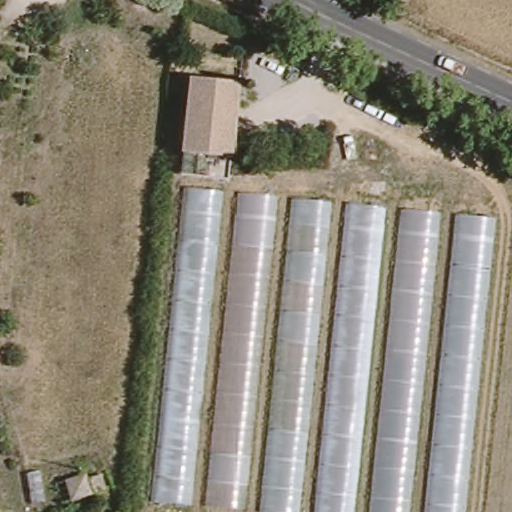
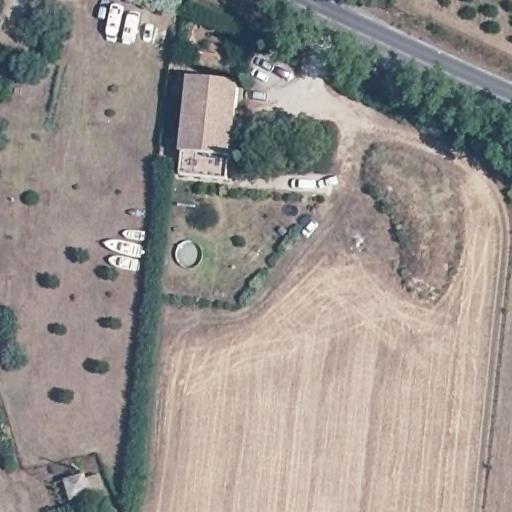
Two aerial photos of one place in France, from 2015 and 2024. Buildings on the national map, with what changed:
unchanged [(244,88),(235,162),(185,156),(194,82),(244,88)]
demolished [(193,184),(503,217),(470,512),(274,512),(156,498),(193,184)]
unchanged [(97,498),(79,505),(73,487),(91,481),(97,498)]

